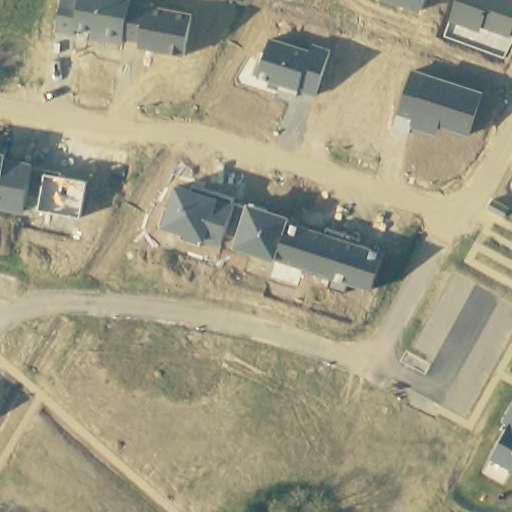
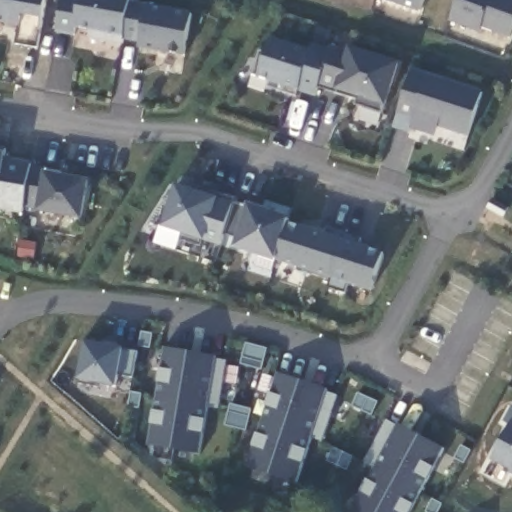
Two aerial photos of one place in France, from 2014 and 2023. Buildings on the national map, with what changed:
new [(17,44),(20,26),(0,22),(0,0),(47,0),(38,48),(17,44)]
unchanged [(141,43),(127,41),(126,46),(91,40),(92,33),(77,30),(76,36),(59,33),(64,0),(132,0),(132,1),(195,14),(187,58),(141,49),(141,43)]
unchanged [(425,0),(420,13),(386,0),(425,0)]
unchanged [(478,32),(450,23),(457,0),(512,0),(512,32),(510,38),(482,26),(478,32)]
unchanged [(301,93),(299,98),(269,89),(271,82),(258,78),(271,38),(312,51),(315,44),(332,49),(317,96),(301,93)]
unchanged [(332,49),(333,45),(348,49),(349,45),(401,61),(387,106),(384,112),(357,104),(359,99),(337,91),(320,88),(332,49)]
unchanged [(438,128),(436,135),(412,128),(409,135),(395,130),(413,69),(485,93),(470,137),(438,128)]
unchanged [(0,210),(0,151),(9,153),(7,158),(32,163),(24,214),(0,210)]
unchanged [(25,208),(32,166),(47,168),(47,174),(89,181),(82,219),(40,212),(25,208)]
unchanged [(349,284),(345,293),(331,288),(332,281),(275,262),(234,249),(237,238),(227,234),(222,247),(202,241),(200,247),(181,240),(184,235),(162,228),(176,185),(193,190),(195,187),(235,200),(234,203),(247,208),(249,203),(291,216),(289,222),(382,253),(371,292),(349,284)]
unchanged [(85,342),(122,349),(138,353),(134,379),(117,376),(115,386),(78,381),(85,342)]
new [(219,409),(208,407),(206,420),(203,435),(198,453),(147,445),(151,424),(162,369),(165,347),(217,358),(217,361),(227,361),(219,409)]
new [(253,447),(271,394),(279,375),(328,391),(327,393),(338,396),(322,442),(312,438),(307,451),(303,465),(297,484),(246,467),(253,447)]
unchanged [(510,425),(503,422),(512,408),(512,473),(491,460),(510,425)]
new [(386,420),(397,426),(398,424),(442,449),(434,468),(410,512),(353,512),(350,511),(361,493),(367,479),(375,467),(363,462),(386,420)]

